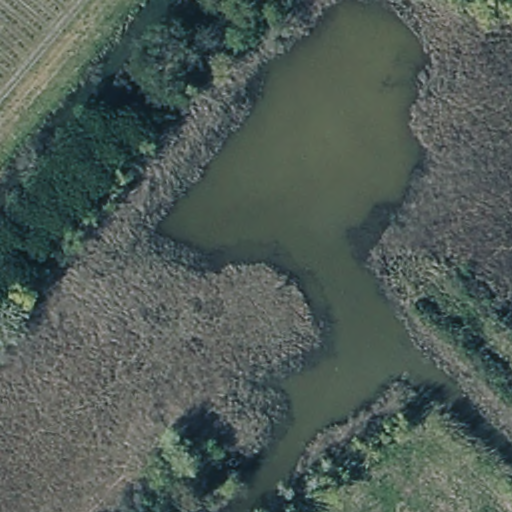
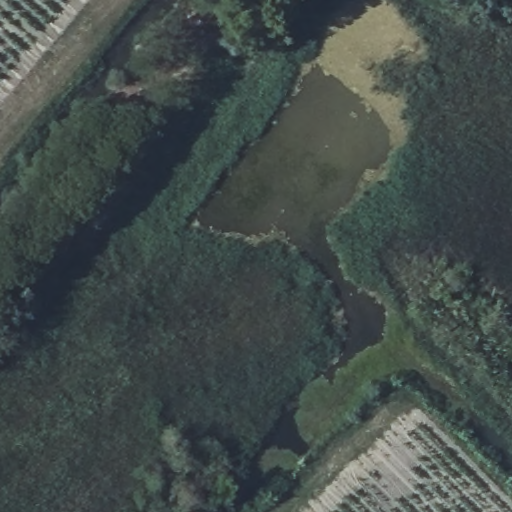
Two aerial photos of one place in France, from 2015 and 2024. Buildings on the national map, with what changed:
[]

